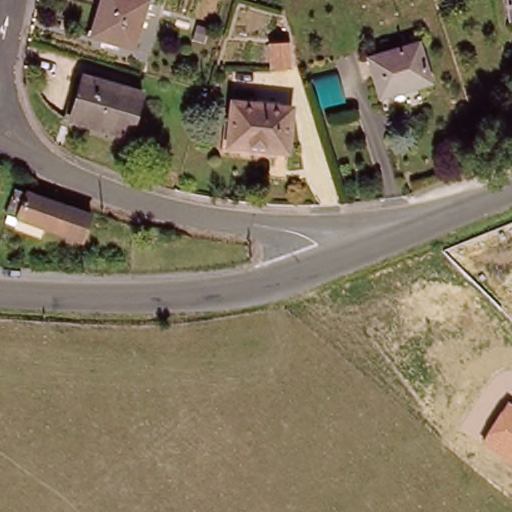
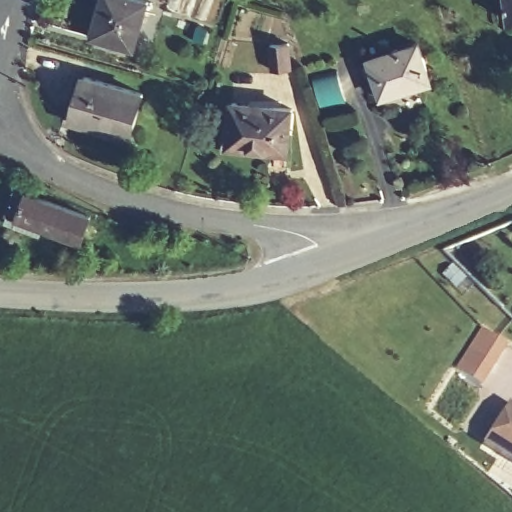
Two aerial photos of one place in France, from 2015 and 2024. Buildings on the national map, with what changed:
unchanged [(93,36),(104,0),(145,0),(148,1),(134,48),(93,36)]
unchanged [(506,0),(512,0),(512,19),(508,19),(506,0)]
unchanged [(369,58),(416,43),(428,82),(380,97),(369,58)]
unchanged [(145,93),(132,135),(73,118),(86,75),(145,93)]
unchanged [(226,145),(230,104),(290,110),(286,151),(226,145)]
unchanged [(17,227),(20,218),(7,213),(17,188),(30,192),(93,215),(82,241),(55,231),(52,240),(17,227)]
new [(483,328),(506,342),(480,384),(457,369),(483,328)]
unchanged [(512,464),(481,444),(507,403),(512,406),(512,464)]

